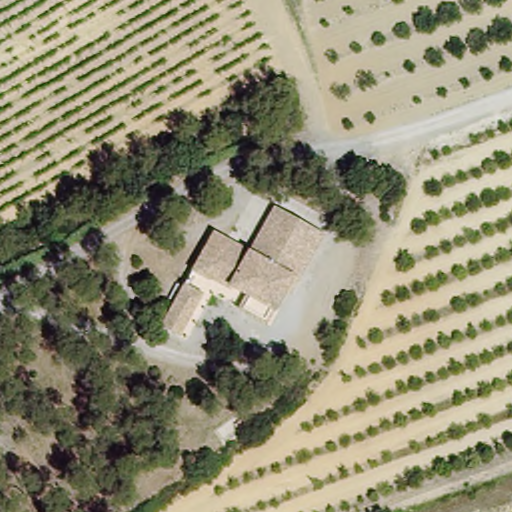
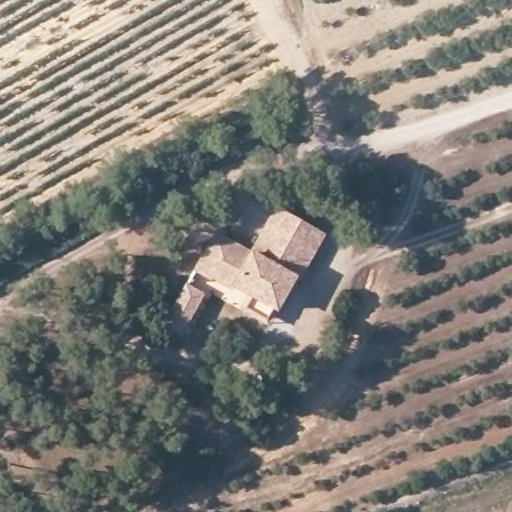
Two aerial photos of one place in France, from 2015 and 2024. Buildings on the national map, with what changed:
unchanged [(213,228),(251,243),(276,205),(325,226),(273,327),(211,295),(186,339),(163,326),(213,228)]

